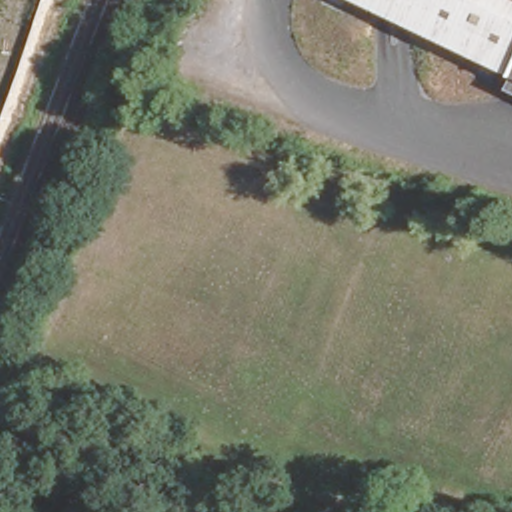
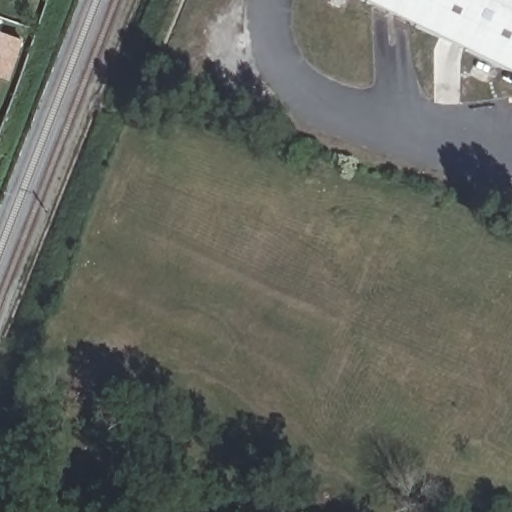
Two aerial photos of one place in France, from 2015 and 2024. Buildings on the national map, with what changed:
unchanged [(512,0),(512,72),(363,0),(512,0)]
new [(15,39),(3,74),(0,73),(0,34),(15,39)]
unchanged [(512,77),(512,87),(508,85),(512,77)]

